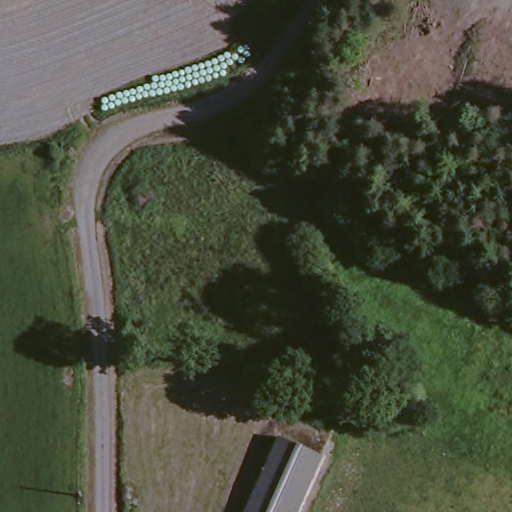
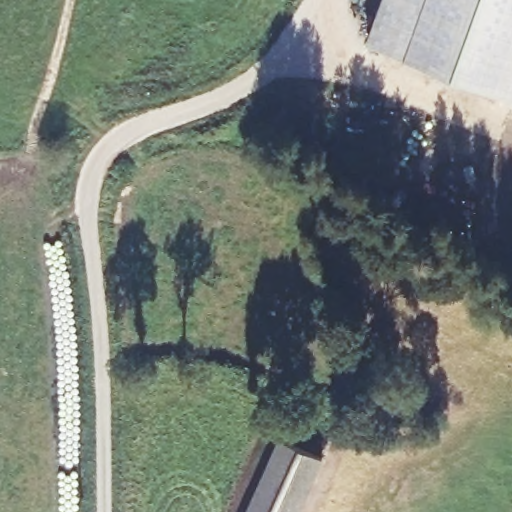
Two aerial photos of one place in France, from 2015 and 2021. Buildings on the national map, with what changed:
new [(380,0),(512,0),(512,91),(366,37),(380,0)]
unchanged [(303,512),(249,512),(283,437),(327,458),(303,512)]

